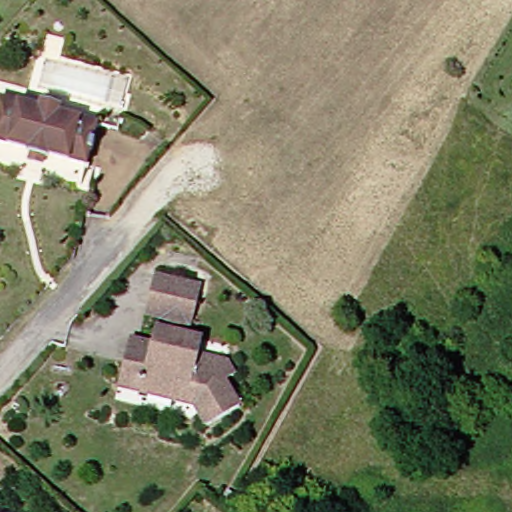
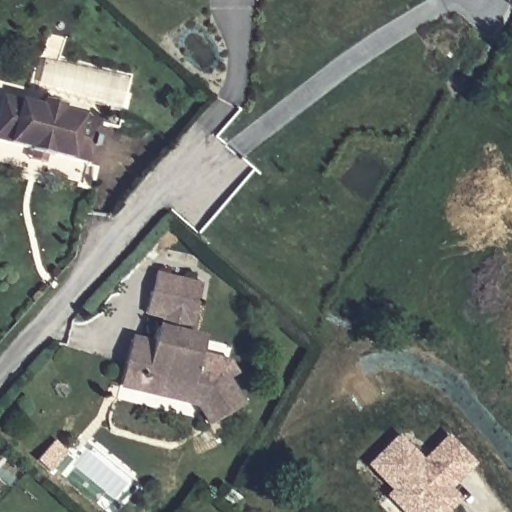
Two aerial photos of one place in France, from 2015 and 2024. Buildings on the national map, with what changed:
unchanged [(43,101),(64,106),(62,112),(100,122),(88,165),(50,155),(50,156),(30,151),(30,149),(0,141),(0,111),(4,96),(42,107),(43,101)]
unchanged [(133,339),(141,340),(154,344),(158,327),(163,328),(165,316),(148,312),(153,290),(157,272),(187,279),(204,283),(195,323),(190,322),(188,333),(192,334),(188,351),(202,355),(229,361),(237,374),(227,380),(243,405),(211,425),(199,404),(143,391),(122,386),(133,339)]
new [(385,498),(391,493),(366,468),(395,440),(419,465),(444,440),(469,466),(449,484),(443,490),(454,501),(443,512),(398,512),(385,498)]

